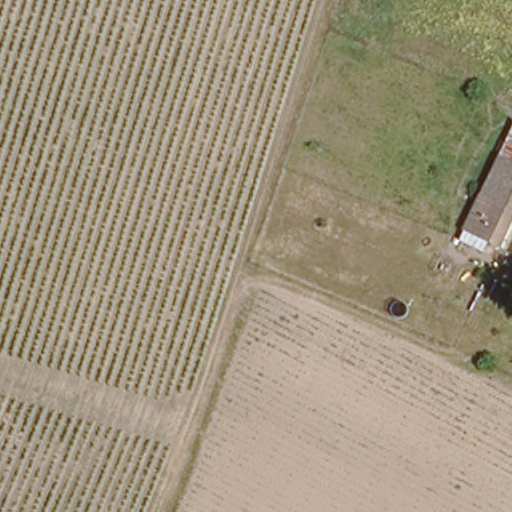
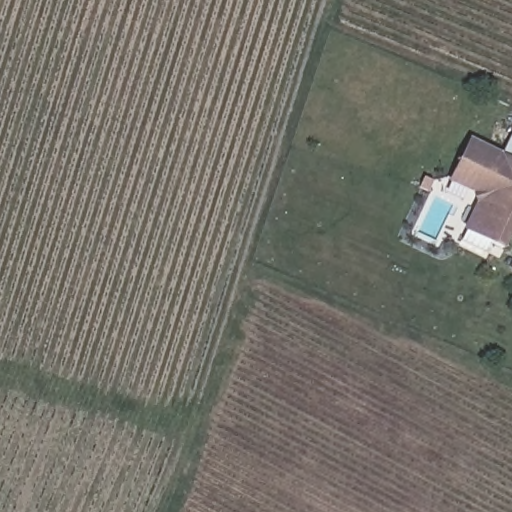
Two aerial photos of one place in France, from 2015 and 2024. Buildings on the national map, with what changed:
unchanged [(512,136),(512,161),(503,157),(505,153),(512,136)]
new [(470,137),(505,153),(503,157),(480,209),(473,193),(448,180),(470,137)]
unchanged [(503,157),(512,161),(512,232),(505,246),(496,242),(488,258),(463,246),(471,230),(503,157)]

